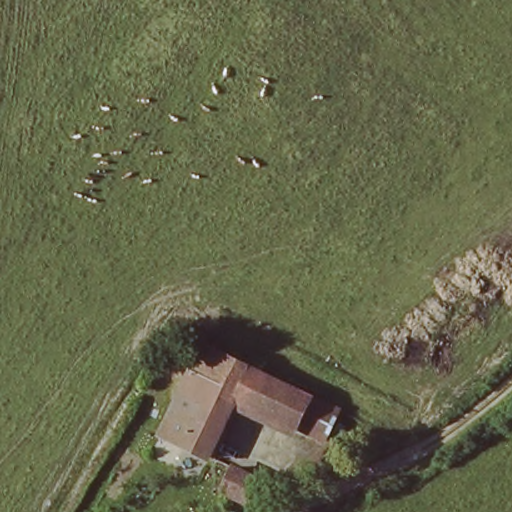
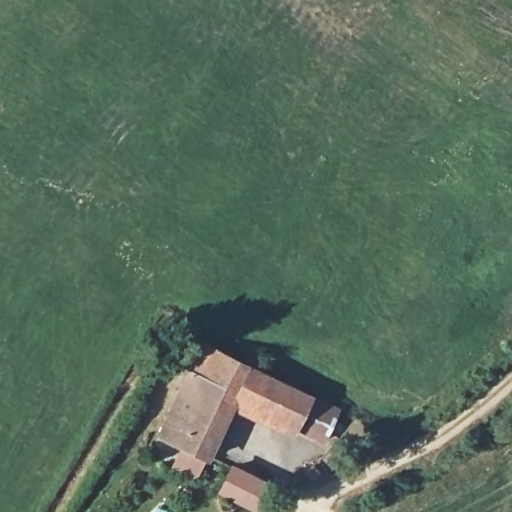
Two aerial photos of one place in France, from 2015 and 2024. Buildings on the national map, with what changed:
unchanged [(200,340),(346,410),(330,449),(297,437),(295,445),(237,413),(214,461),(156,438),(200,340)]
unchanged [(222,498),(240,465),(273,480),(263,500),(248,495),(242,507),(222,498)]

